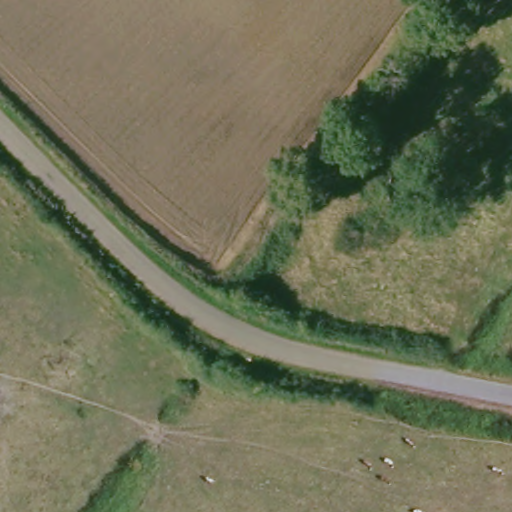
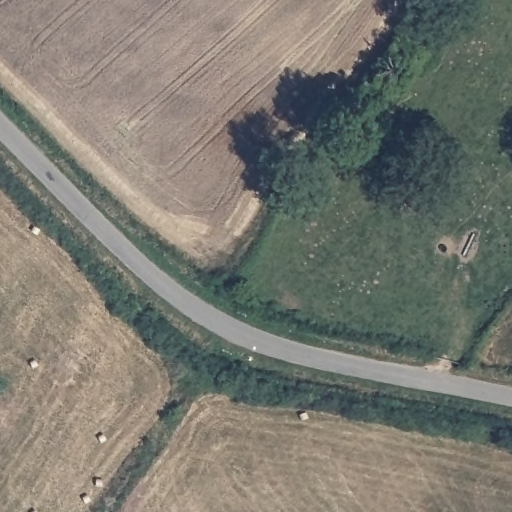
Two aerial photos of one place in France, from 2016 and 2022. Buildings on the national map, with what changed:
[]

